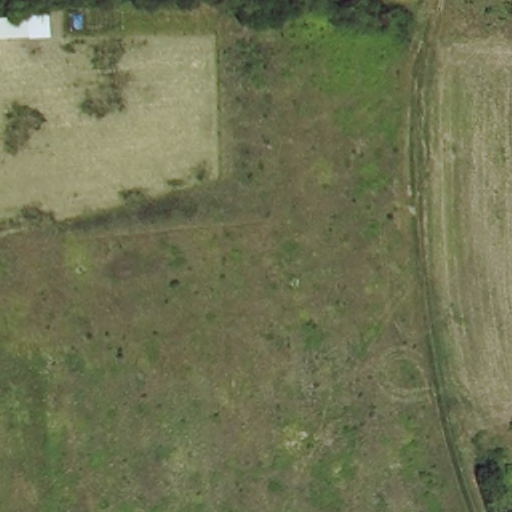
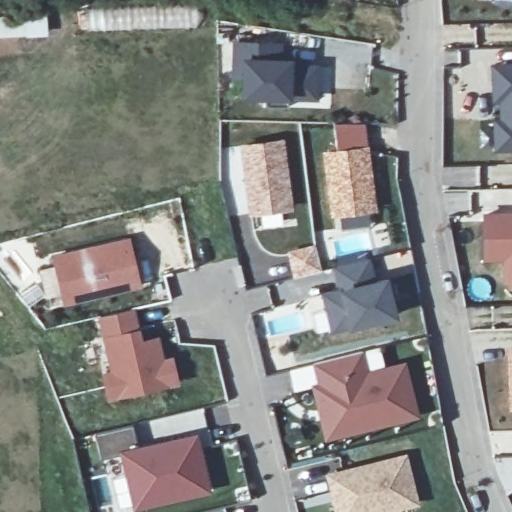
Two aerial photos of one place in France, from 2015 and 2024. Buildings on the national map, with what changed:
new [(269,105),(270,95),(249,94),(249,74),(239,74),(241,41),(286,43),(285,69),(286,59),(296,60),(295,65),(294,65),(323,66),(321,97),(294,96),(294,106),(269,105)]
new [(499,100),(499,65),(512,65),(512,100),(499,100)]
new [(507,120),(507,100),(512,100),(512,120),(507,120)]
new [(501,148),(501,120),(512,120),(512,148),(501,148)]
new [(248,145),(287,140),(295,206),(257,211),(248,145)]
new [(339,213),(331,152),(371,147),(379,208),(339,213)]
new [(512,216),(512,285),(502,284),(502,262),(483,262),(483,216),(512,216)]
new [(68,302),(58,258),(132,241),(142,284),(68,302)]
new [(346,290),(344,282),(341,265),(373,257),(377,275),(379,282),(346,290)]
new [(338,329),(329,294),(390,279),(399,314),(338,329)]
new [(134,309),(142,339),(158,335),(163,358),(173,356),(179,383),(106,402),(100,374),(109,371),(97,316),(134,309)]
new [(323,408),(318,385),(324,383),(319,361),(364,350),(370,373),(409,364),(421,414),(353,430),(330,436),(323,408)]
new [(169,437),(167,428),(181,423),(179,418),(158,423),(157,417),(202,406),(206,428),(198,430),(213,493),(131,511),(118,455),(117,452),(138,444),(156,440),(169,437)]
new [(133,423),(138,444),(117,452),(118,455),(100,460),(93,433),(133,423)]
new [(419,501),(377,512),(344,512),(341,500),(345,499),(343,490),(337,492),(333,475),(409,456),(419,501)]

